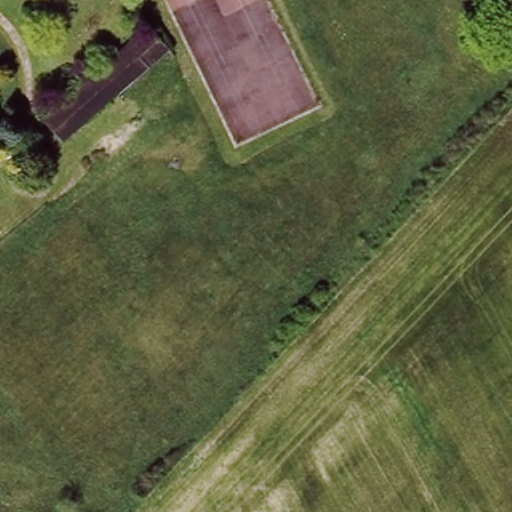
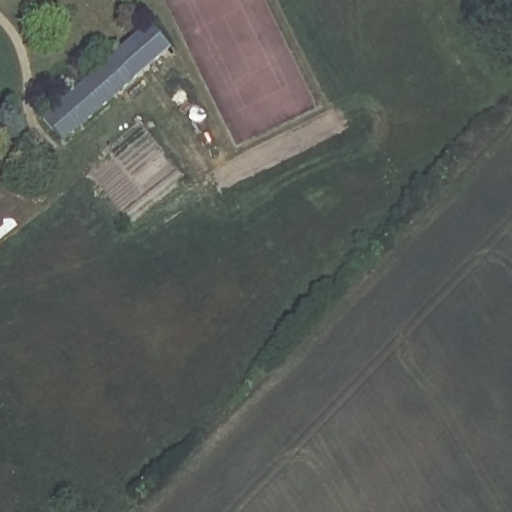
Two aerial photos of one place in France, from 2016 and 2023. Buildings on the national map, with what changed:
unchanged [(142,25),(166,54),(60,147),(35,117),(142,25)]

